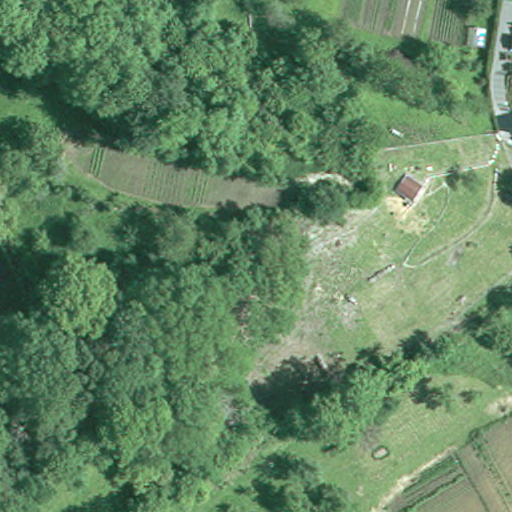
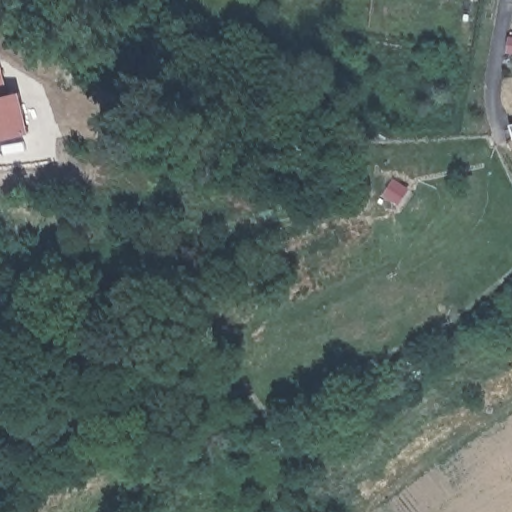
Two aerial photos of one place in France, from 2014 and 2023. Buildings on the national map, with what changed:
new [(4,63),(10,91),(21,90),(33,136),(0,143),(0,64),(4,63)]

